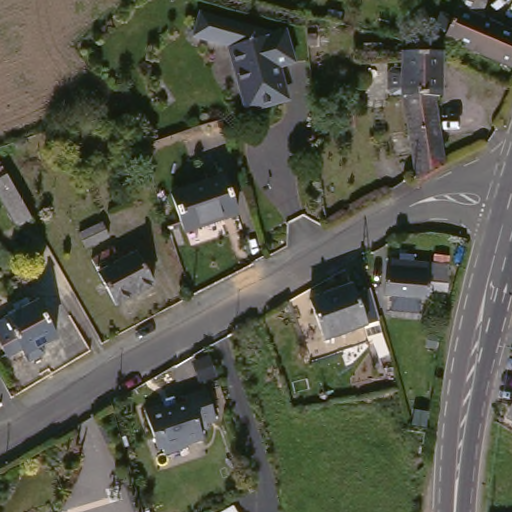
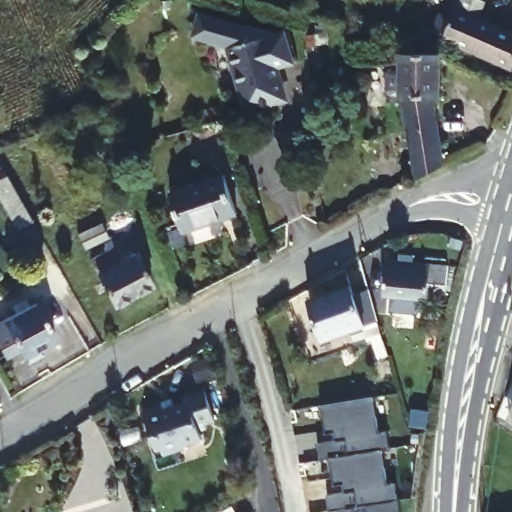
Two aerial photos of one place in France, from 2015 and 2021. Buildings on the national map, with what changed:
unchanged [(449,38),(463,7),(472,11),(473,10),(512,27),(512,66),(459,42),(449,38)]
unchanged [(234,49),(197,40),(203,17),(253,29),(254,25),(281,32),(289,30),(298,65),(281,69),(289,101),(252,111),(234,49)]
unchanged [(421,184),(407,102),(407,101),(398,101),(393,96),(393,81),(393,76),(398,71),(408,71),(408,55),(423,56),(446,57),(445,101),(441,101),(451,168),(421,184)]
unchanged [(32,232),(7,188),(2,179),(16,172),(21,181),(46,224),(32,232)]
unchanged [(235,180),(248,218),(194,236),(181,197),(235,180)]
unchanged [(89,249),(113,239),(119,253),(95,263),(89,249)]
unchanged [(164,301),(126,320),(101,274),(123,262),(130,276),(147,268),(164,301)]
unchanged [(452,272),(450,291),(432,290),(430,306),(387,302),(391,267),(452,272)]
unchanged [(366,287),(379,328),(337,342),(323,301),(366,287)]
unchanged [(42,302),(61,339),(28,356),(25,349),(10,357),(0,337),(0,324),(42,302)]
unchanged [(5,395),(0,398),(0,387),(5,395)]
unchanged [(221,426),(204,432),(208,444),(190,450),(191,453),(169,460),(163,442),(158,443),(150,417),(168,411),(170,416),(192,409),(190,403),(211,397),(221,426)]
new [(345,493),(344,485),(334,486),(330,458),(320,461),(318,444),(336,441),(335,433),(326,434),(321,406),(372,398),(378,435),(387,433),(389,449),(380,451),(387,487),(394,485),(399,512),(331,512),(328,496),(345,493)]

